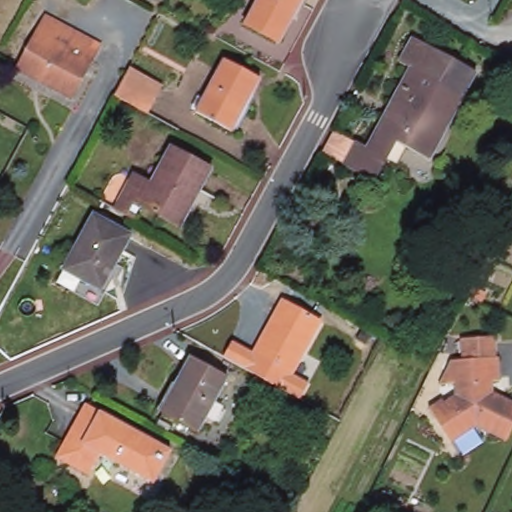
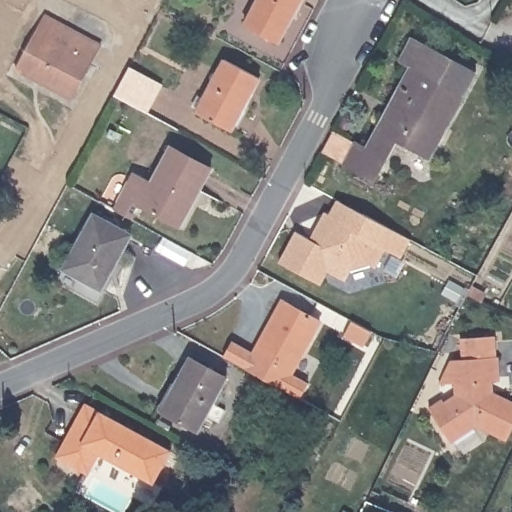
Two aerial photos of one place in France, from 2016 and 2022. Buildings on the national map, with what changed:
unchanged [(278,47),(246,29),(262,0),(303,0),(278,47)]
unchanged [(47,14),(103,45),(70,99),(16,74),(47,14)]
unchanged [(346,162),(324,150),(326,145),(334,130),(335,130),(357,142),(358,140),(369,146),(412,67),(401,60),(415,36),(443,51),(478,71),(464,95),(429,159),(399,142),(377,182),(345,164),(346,162)]
unchanged [(230,135),(195,115),(224,64),(258,84),(230,135)]
unchanged [(146,115),(115,97),(130,70),(162,87),(146,115)]
unchanged [(183,228),(146,207),(138,221),(117,210),(136,175),(155,185),(174,150),(214,172),(183,228)]
new [(313,240),(317,232),(328,212),(333,215),(340,200),(371,217),(412,239),(403,257),(387,249),(377,267),(370,263),(353,268),(347,281),(329,271),(322,284),(281,262),(297,231),(313,240)]
unchanged [(102,292),(63,272),(94,217),(131,237),(102,292)]
unchanged [(291,374),(255,354),(284,302),(320,322),(291,374)]
unchanged [(512,432),(507,442),(476,427),(450,443),(437,422),(451,415),(444,404),(455,397),(455,383),(441,383),(452,362),(464,361),(462,340),(496,337),(498,358),(499,381),(487,382),(487,390),(512,402),(512,432)]
unchanged [(198,428),(162,410),(191,357),(226,377),(198,428)]
unchanged [(174,451),(156,483),(101,454),(90,475),(58,457),(88,404),(174,451)]

